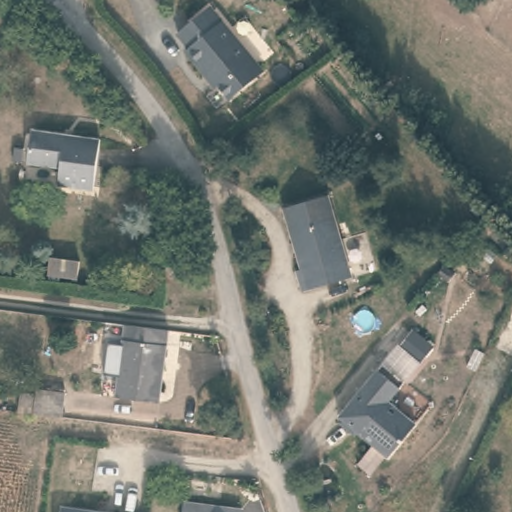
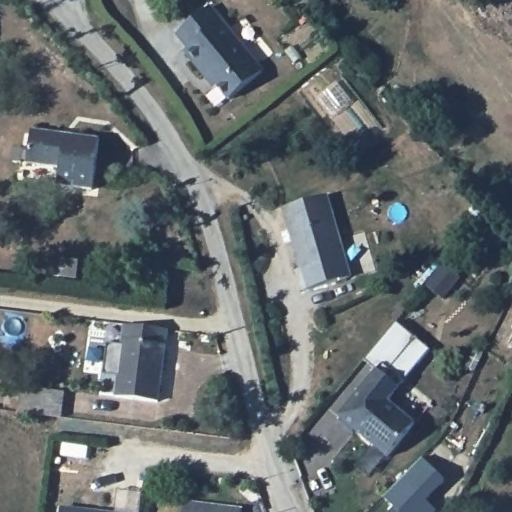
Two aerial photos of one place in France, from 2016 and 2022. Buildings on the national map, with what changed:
unchanged [(257,78),(221,102),(201,74),(199,76),(182,49),(186,47),(176,31),(212,8),(257,78)]
unchanged [(94,190),(61,186),(62,170),(27,167),(28,133),(95,140),(94,190)]
unchanged [(347,278),(300,291),(293,272),(298,269),(296,256),(296,243),(291,242),(281,205),(323,193),(347,278)]
unchanged [(69,266),(47,265),(48,246),(72,247),(69,266)]
demolished [(512,309),(512,351),(496,343),(512,309)]
unchanged [(396,321),(417,337),(386,372),(378,366),(373,373),(363,364),(396,321)]
unchanged [(165,329),(157,399),(115,396),(123,324),(165,329)]
unchanged [(402,382),(386,372),(412,343),(417,337),(432,351),(402,382)]
unchanged [(395,463),(338,421),(371,376),(378,366),(402,382),(388,406),(418,426),(395,463)]
unchanged [(15,395),(37,396),(37,390),(61,392),(59,420),(37,417),(14,414),(15,395)]
new [(422,461),(446,484),(427,504),(436,512),(400,512),(393,506),(386,498),(422,461)]
unchanged [(213,507),(240,510),(240,512),(181,512),(182,505),(213,507)]
unchanged [(400,512),(388,512),(393,506),(400,512)]
unchanged [(61,512),(61,510),(83,512),(61,512)]

